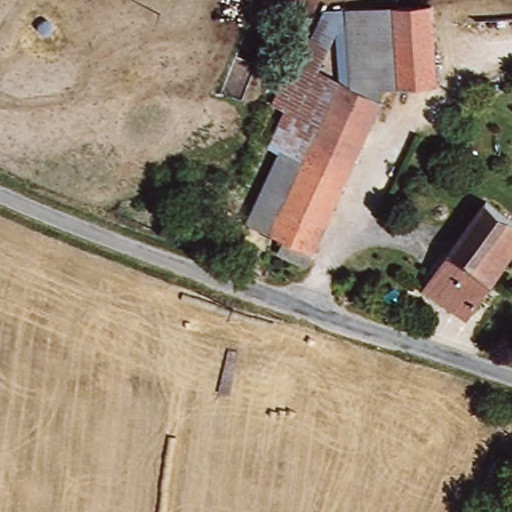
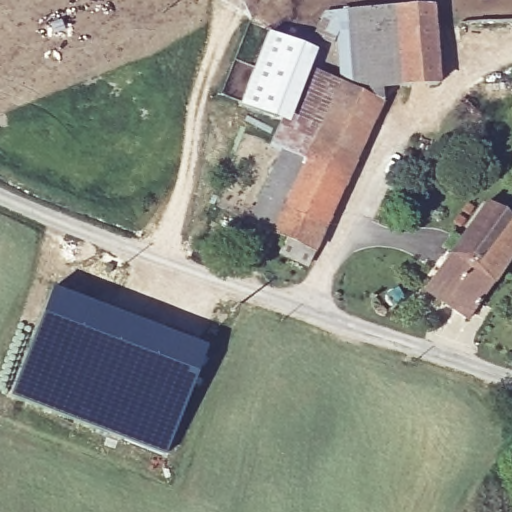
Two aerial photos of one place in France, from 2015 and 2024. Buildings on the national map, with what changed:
unchanged [(436,19),(442,87),(406,92),(400,15),(434,10),(436,19)]
unchanged [(406,92),(375,94),(373,82),(362,82),(359,26),(358,16),(400,15),(406,92)]
unchanged [(317,41),(340,57),(331,75),(389,108),(307,269),(280,255),(288,240),(253,220),(287,152),(276,150),(293,116),(282,109),(317,41)]
unchanged [(429,287),(491,207),(512,223),(512,258),(466,317),(429,287)]
new [(51,290),(204,349),(165,454),(12,397),(51,290)]

